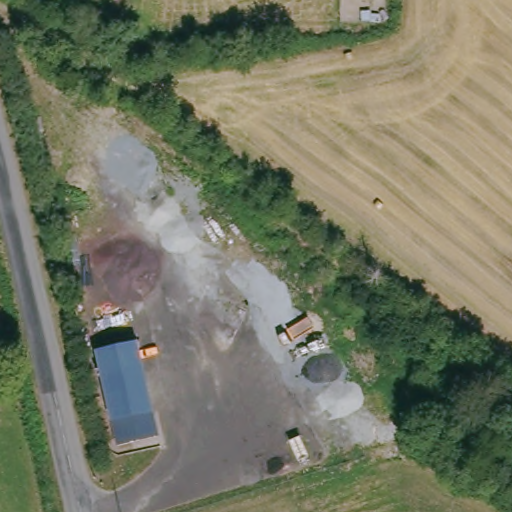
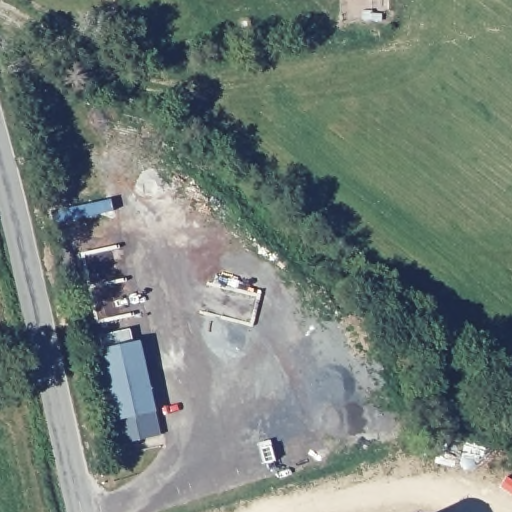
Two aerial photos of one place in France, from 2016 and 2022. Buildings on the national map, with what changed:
unchanged [(155,430),(112,439),(93,346),(135,337),(155,430)]

